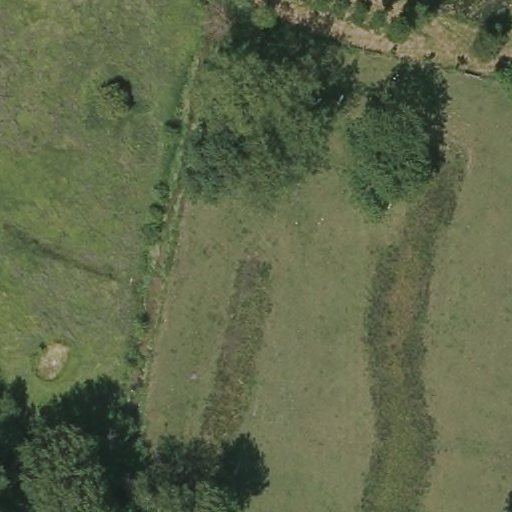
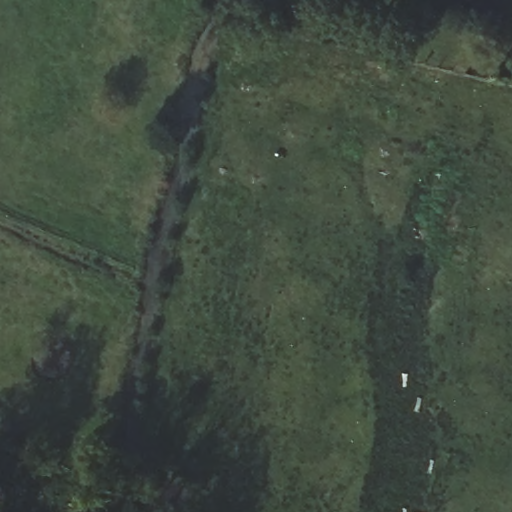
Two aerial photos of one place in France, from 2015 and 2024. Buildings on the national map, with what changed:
[]

